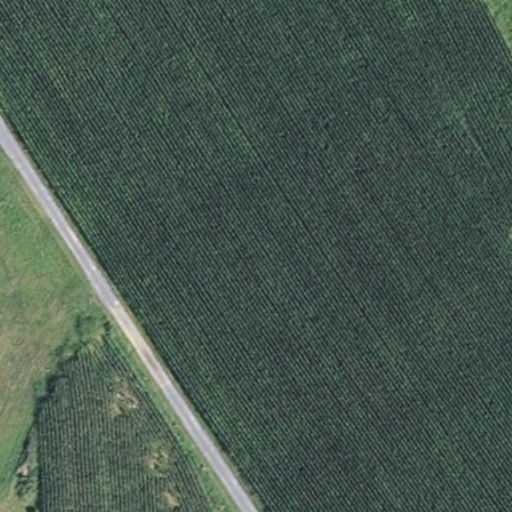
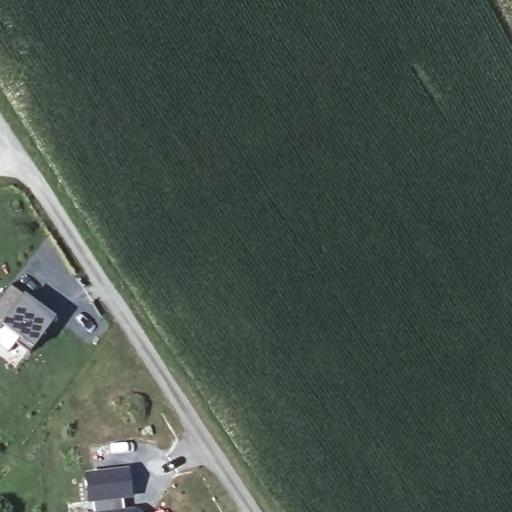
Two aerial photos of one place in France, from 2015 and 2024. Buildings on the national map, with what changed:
new [(7,288),(22,297),(54,320),(31,349),(27,353),(15,344),(17,341),(0,328),(0,298),(7,288)]
new [(92,502),(89,478),(129,473),(132,498),(125,498),(126,512),(96,512),(95,502),(92,502)]

